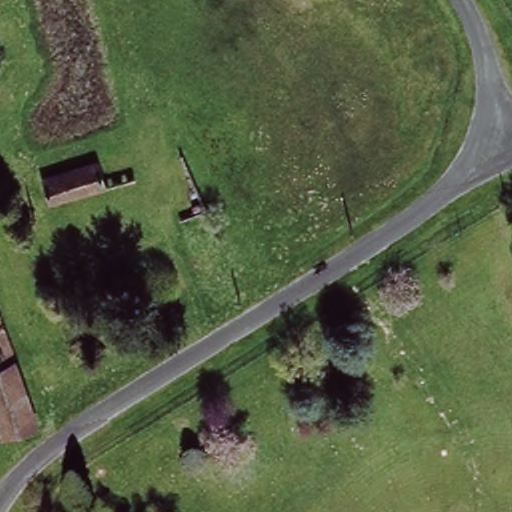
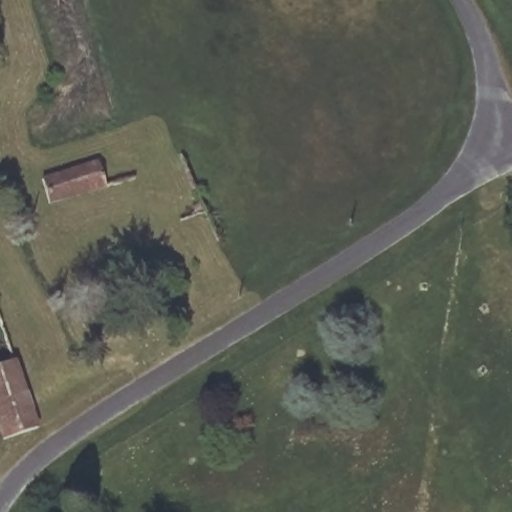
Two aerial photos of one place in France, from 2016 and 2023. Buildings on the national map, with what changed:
unchanged [(98,160),(105,184),(50,200),(43,177),(98,160)]
unchanged [(14,349),(0,354),(0,311),(14,349)]
unchanged [(18,357),(38,428),(0,437),(0,363),(18,357)]

